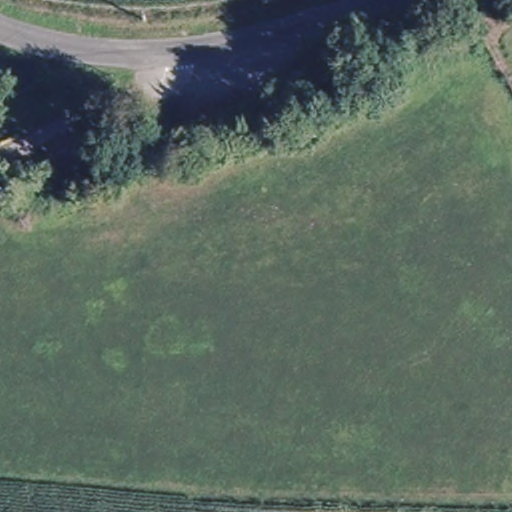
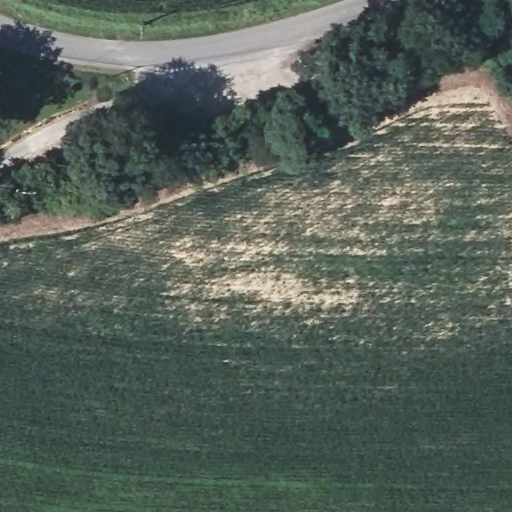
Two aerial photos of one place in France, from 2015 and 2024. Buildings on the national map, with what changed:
[]

